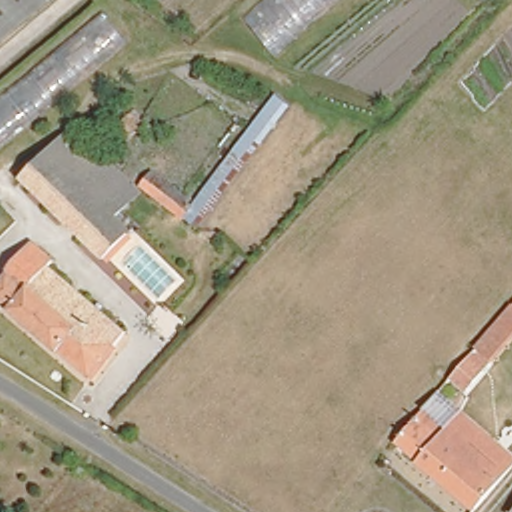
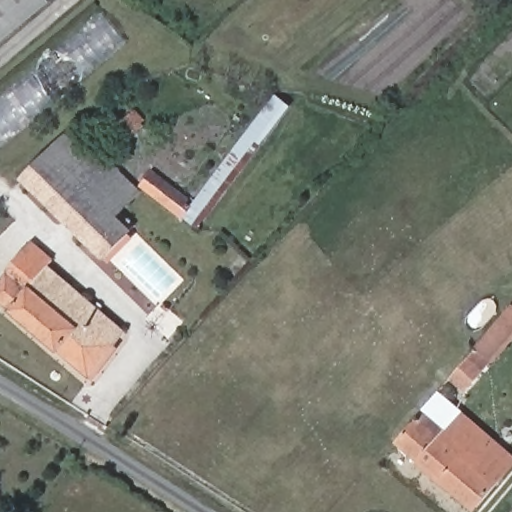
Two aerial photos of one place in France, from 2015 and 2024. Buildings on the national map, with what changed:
unchanged [(46,0),(47,1),(0,40),(0,0),(46,0)]
demolished [(236,13),(251,0),(335,0),(272,51),(236,13)]
unchanged [(0,153),(0,92),(101,8),(129,39),(0,153)]
unchanged [(192,200),(271,93),(291,105),(198,235),(140,190),(155,171),(192,200)]
unchanged [(117,117),(140,136),(130,147),(108,126),(117,117)]
unchanged [(63,135),(67,139),(130,197),(116,214),(135,232),(108,260),(16,177),(63,135)]
unchanged [(85,372),(0,301),(0,273),(25,244),(124,328),(85,372)]
unchanged [(445,381),(512,302),(512,343),(464,396),(445,381)]
unchanged [(390,445),(439,391),(512,454),(512,469),(472,512),(469,512),(390,445)]

